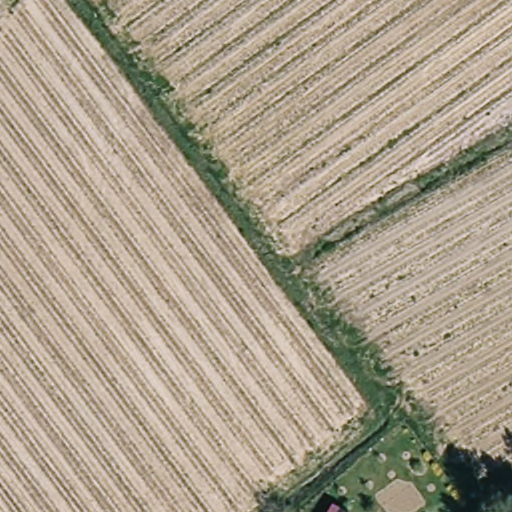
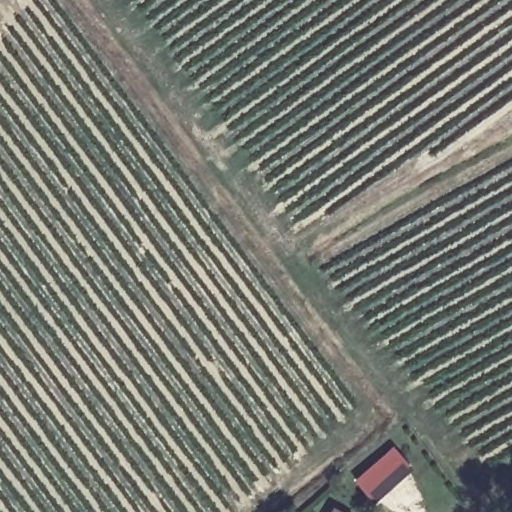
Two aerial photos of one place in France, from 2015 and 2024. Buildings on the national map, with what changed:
new [(412,467),(373,501),(354,479),(393,445),(412,467)]
unchanged [(346,512),(328,512),(333,504),(346,512)]

